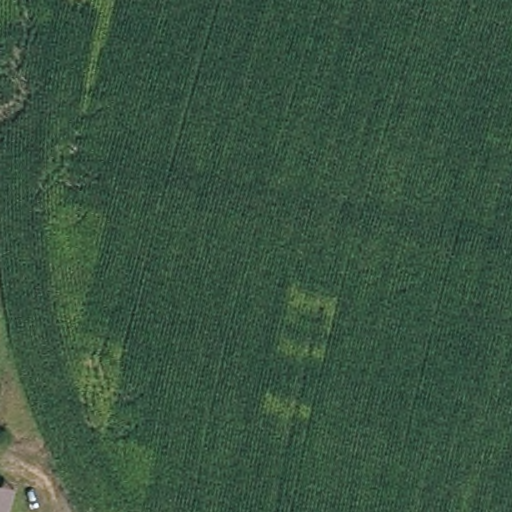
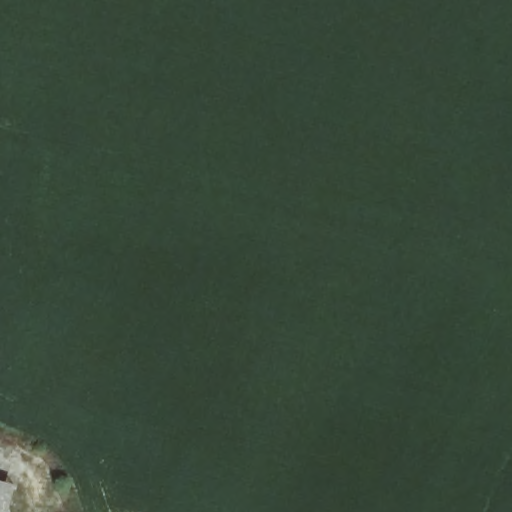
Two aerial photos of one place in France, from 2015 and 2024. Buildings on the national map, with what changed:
unchanged [(7,512),(0,512),(0,481),(13,485),(7,512)]

